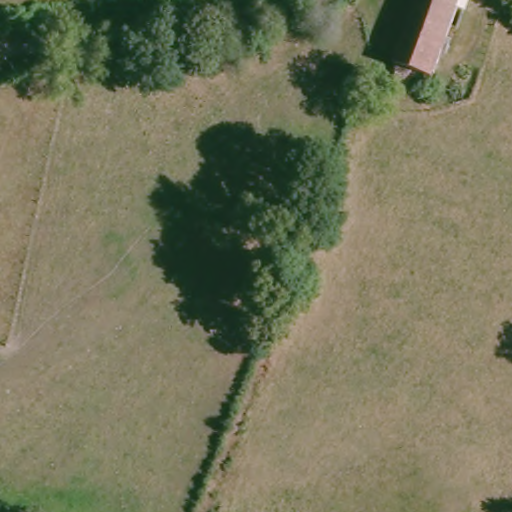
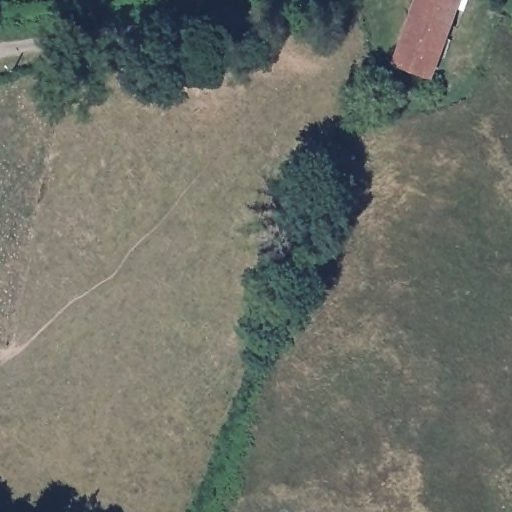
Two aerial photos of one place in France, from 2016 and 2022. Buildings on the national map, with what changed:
unchanged [(417,22),(425,0),(467,0),(454,35),(417,22)]
unchanged [(436,82),(398,70),(417,22),(454,35),(436,82)]

